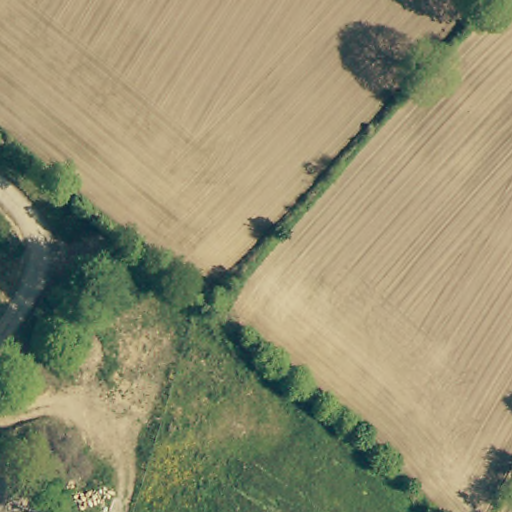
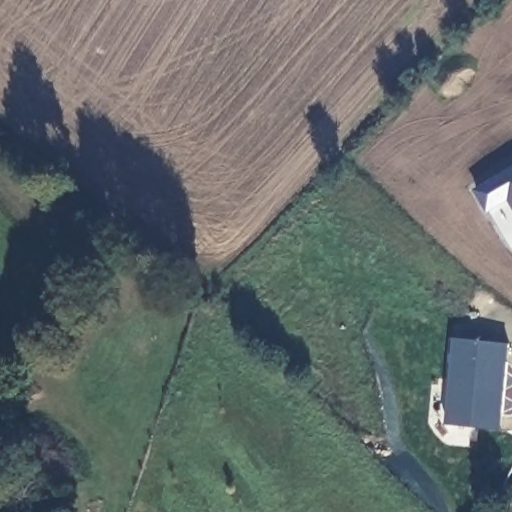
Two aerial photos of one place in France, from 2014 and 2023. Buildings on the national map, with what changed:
new [(485,427),(446,423),(456,335),(511,342),(503,414),(501,429),(485,427)]

